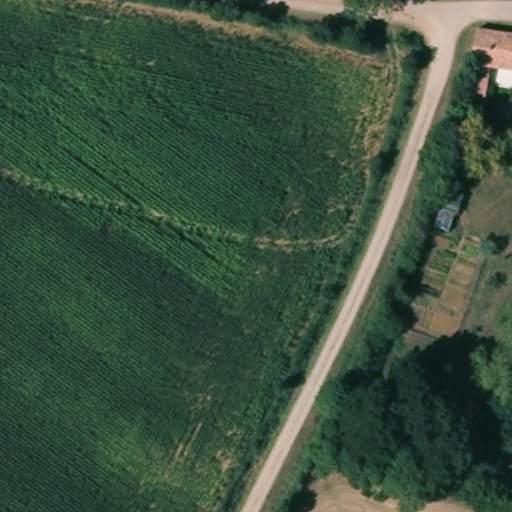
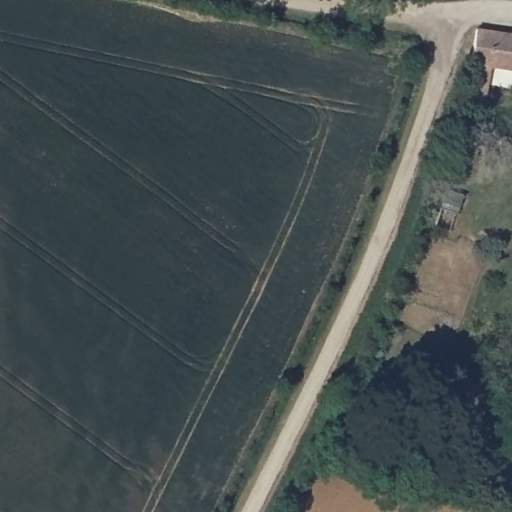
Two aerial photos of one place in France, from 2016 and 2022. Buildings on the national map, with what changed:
unchanged [(512,38),(512,70),(470,66),(471,35),(512,38)]

